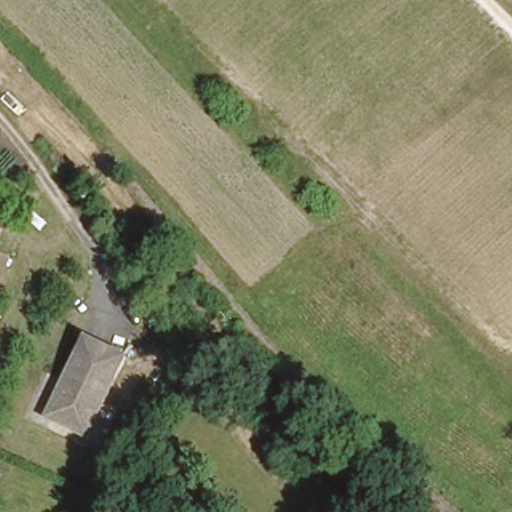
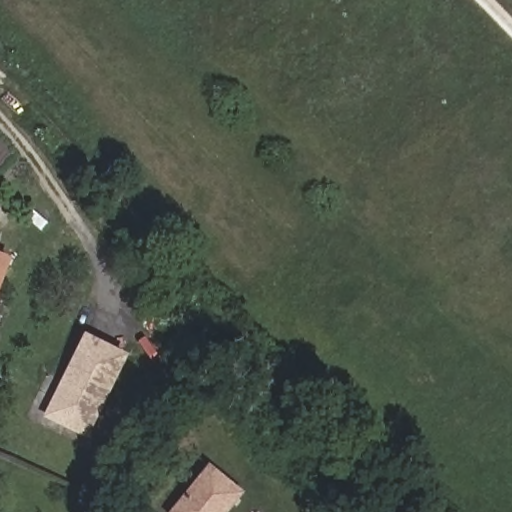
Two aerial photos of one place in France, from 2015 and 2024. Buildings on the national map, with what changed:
unchanged [(3,255),(0,263),(0,253),(3,255)]
unchanged [(129,356),(88,439),(42,417),(84,334),(129,356)]
new [(199,482),(213,467),(241,490),(227,506),(222,512),(174,512),(199,482)]
new [(231,512),(222,512),(241,490),(246,494),(231,512)]
new [(144,504),(153,512),(138,512),(144,504)]
demolished [(142,508),(148,512),(139,512),(142,508)]

